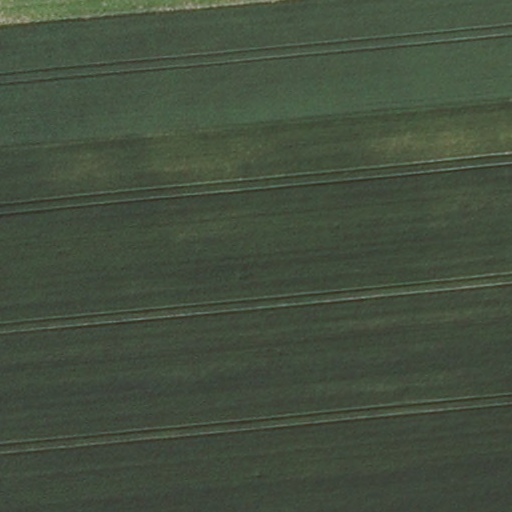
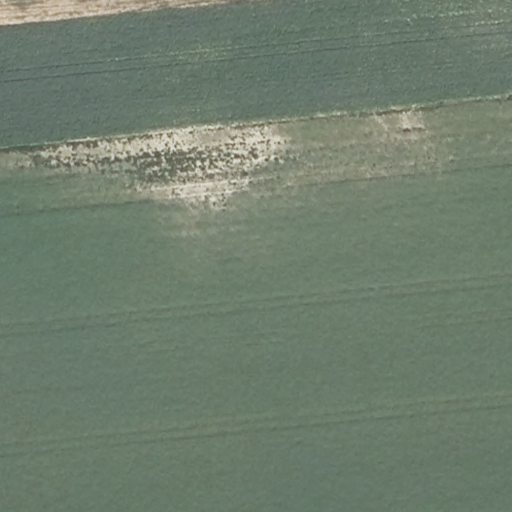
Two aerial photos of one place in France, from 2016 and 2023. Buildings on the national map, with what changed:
[]

